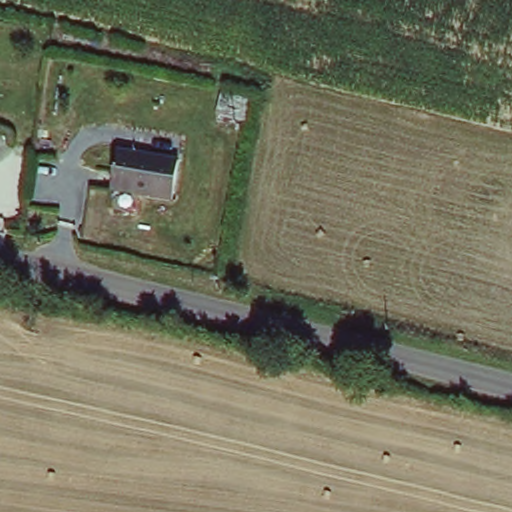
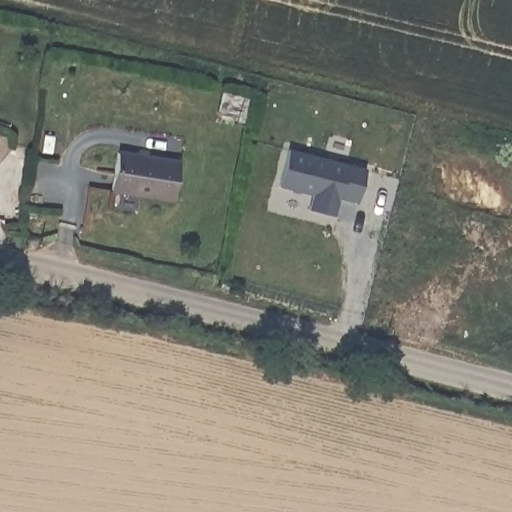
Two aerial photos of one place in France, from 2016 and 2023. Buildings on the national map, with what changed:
unchanged [(174,203),(109,190),(117,147),(177,156),(174,203)]
new [(288,148),(368,167),(359,202),(340,198),(336,216),(308,209),(311,194),(280,186),(288,148)]

